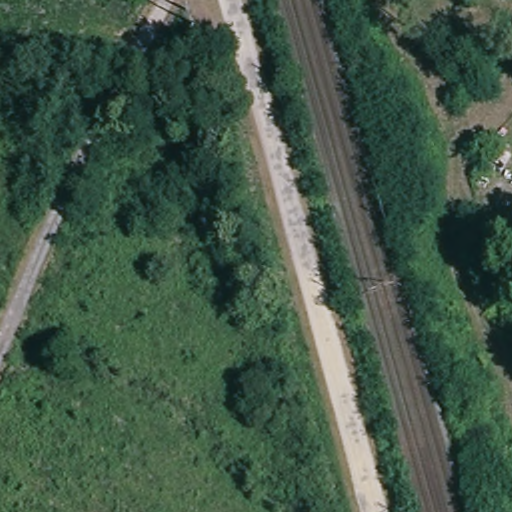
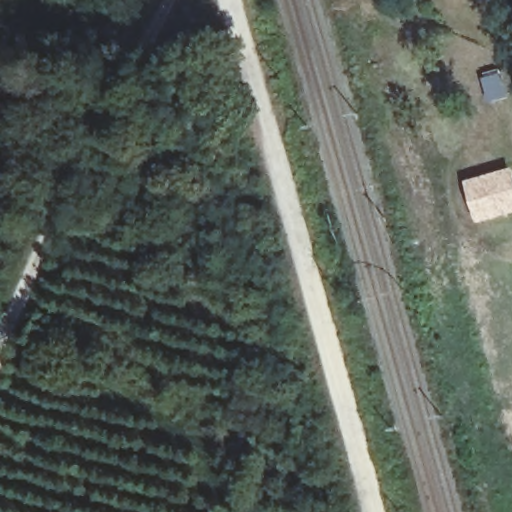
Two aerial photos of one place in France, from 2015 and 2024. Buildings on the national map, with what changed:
new [(512,213),(477,222),(465,180),(511,169),(512,170),(512,213)]

